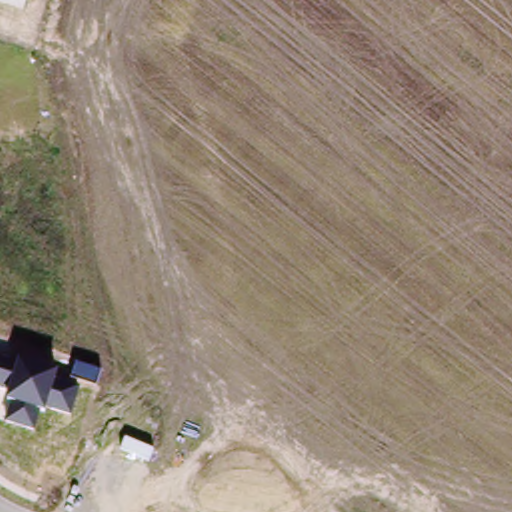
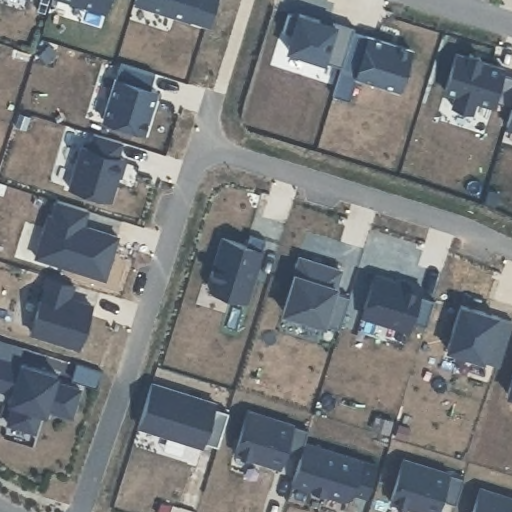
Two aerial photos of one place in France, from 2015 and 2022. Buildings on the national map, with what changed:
new [(63,0),(109,0),(105,13),(63,0)]
new [(218,0),(209,28),(145,9),(148,0),(218,0)]
new [(319,23),(320,19),(335,23),(353,29),(352,33),(341,69),(287,51),(292,36),(281,32),(287,14),(319,23)]
new [(341,69),(352,33),(410,51),(398,91),(357,79),(349,102),(332,97),(341,69)]
new [(468,59),(469,56),(480,59),(479,62),(504,70),(502,75),(512,78),(512,108),(493,102),(492,107),(475,102),(471,114),(452,108),(455,96),(445,92),(456,55),(468,59)]
new [(155,75),(150,91),(156,93),(143,134),(102,120),(120,65),(155,75)]
new [(512,108),(512,128),(506,126),(512,108)]
new [(121,144),(117,160),(125,161),(120,179),(117,178),(111,202),(69,190),(80,148),(88,150),(92,135),(121,144)]
new [(81,231),(82,227),(88,229),(115,237),(102,277),(35,257),(48,216),(51,217),(56,202),(87,212),(81,231)]
new [(245,247),(248,237),(263,241),(245,303),(211,292),(207,285),(221,240),(245,247)]
new [(339,271),(333,293),(349,298),(339,330),(282,312),(298,258),(339,271)]
new [(78,348),(30,334),(47,278),(72,285),(68,300),(90,307),(78,348)]
new [(401,286),(401,283),(421,289),(418,297),(433,302),(425,328),(409,323),(407,332),(361,319),(374,278),(401,286)]
new [(512,323),(512,325),(498,367),(446,350),(460,306),(512,323)]
unchanged [(13,402),(5,400),(8,391),(0,389),(0,360),(20,366),(22,359),(59,371),(57,382),(77,388),(70,417),(41,410),(34,433),(6,424),(13,402)]
new [(74,365),(101,373),(97,387),(70,379),(74,365)]
new [(507,396),(512,380),(512,398),(507,396)]
new [(151,386),(214,405),(213,410),(227,414),(217,448),(202,443),(201,448),(137,428),(151,386)]
new [(262,417),(307,431),(303,445),(299,458),(284,453),(279,469),(249,460),(262,417)]
new [(291,485),(299,458),(303,445),(361,462),(350,498),(343,501),(322,495),(312,492),(291,485)]
new [(418,465),(463,480),(455,506),(440,502),(437,512),(419,512),(405,507),(418,465)]
new [(494,495),(512,500),(512,512),(489,512),(494,495)]

